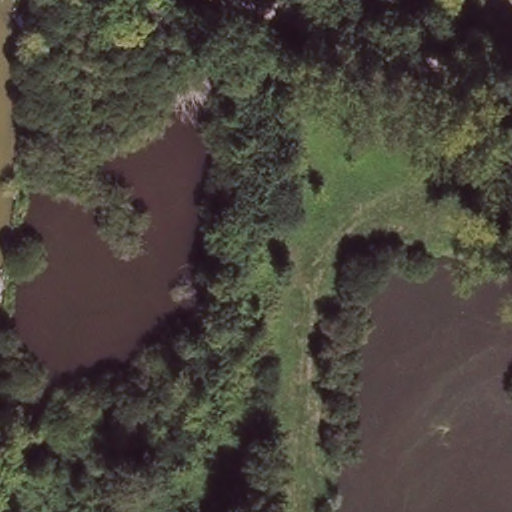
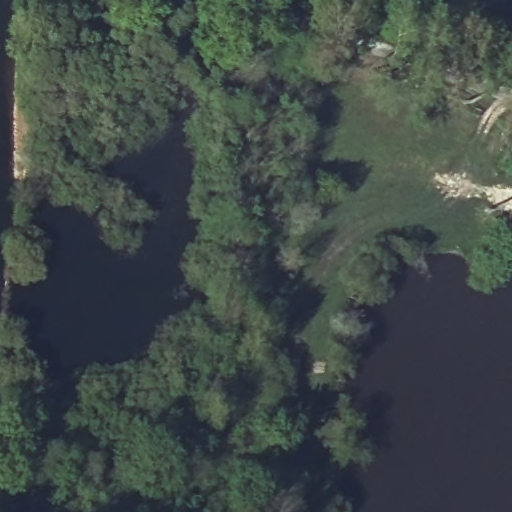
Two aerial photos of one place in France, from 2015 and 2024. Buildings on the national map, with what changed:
[]

